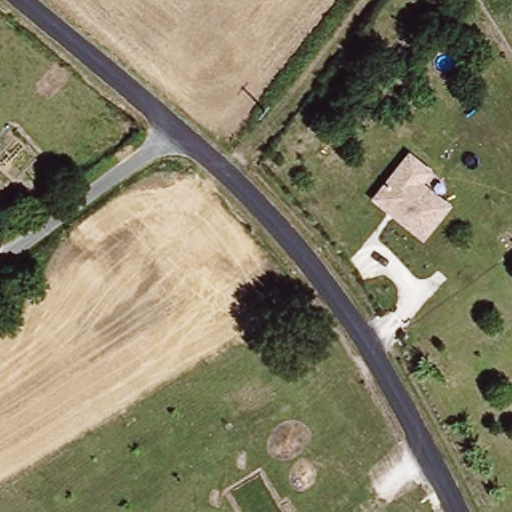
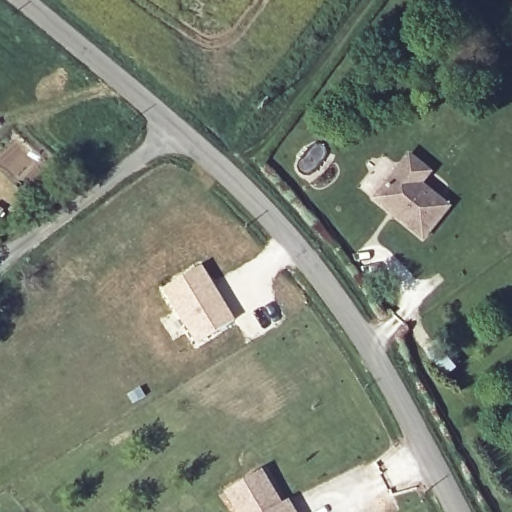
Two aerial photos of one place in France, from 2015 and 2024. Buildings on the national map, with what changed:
unchanged [(410,152),(434,171),(423,185),(451,206),(422,243),(371,200),(410,152)]
new [(202,263),(236,319),(196,346),(160,289),(202,263)]
new [(290,499),(298,512),(234,512),(224,494),(262,469),(282,503),(290,499)]

